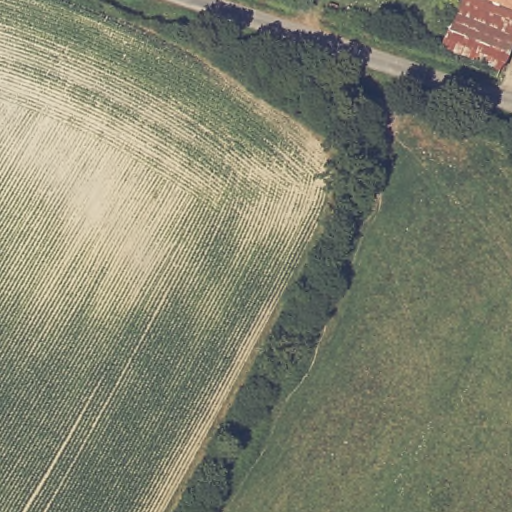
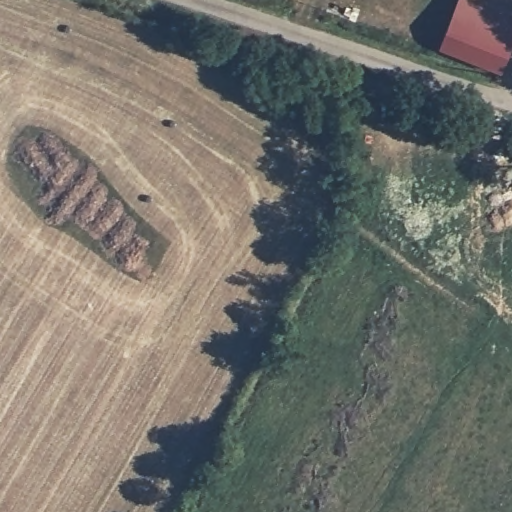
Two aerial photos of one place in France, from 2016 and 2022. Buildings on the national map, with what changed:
unchanged [(460,0),(510,0),(512,1),(512,45),(504,64),(442,41),(460,0)]
unchanged [(512,0),(512,1),(510,0),(512,0)]

